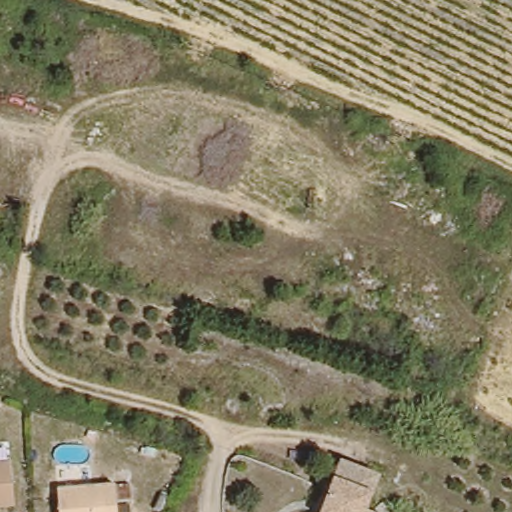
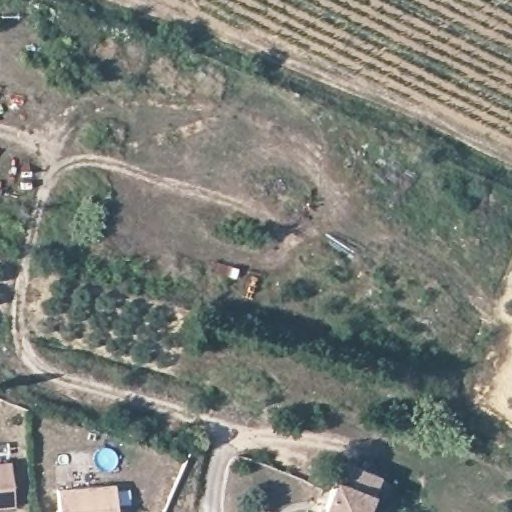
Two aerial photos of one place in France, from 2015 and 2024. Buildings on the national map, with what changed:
unchanged [(15,505),(2,506),(2,512),(0,512),(0,465),(11,465),(15,505)]
unchanged [(337,474),(377,488),(369,505),(365,503),(365,502),(360,512),(318,512),(328,489),(337,474)]
unchanged [(117,485),(119,512),(60,512),(58,489),(117,485)]

